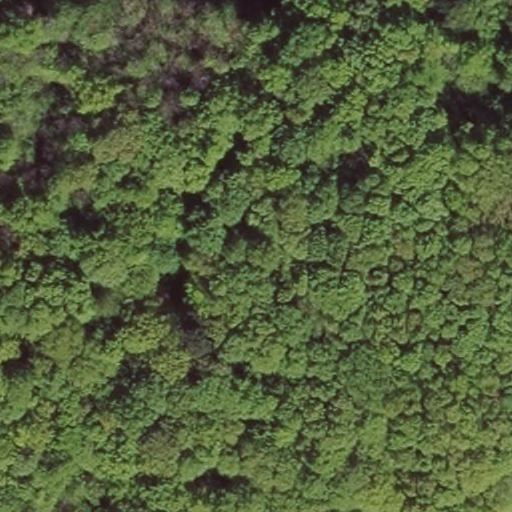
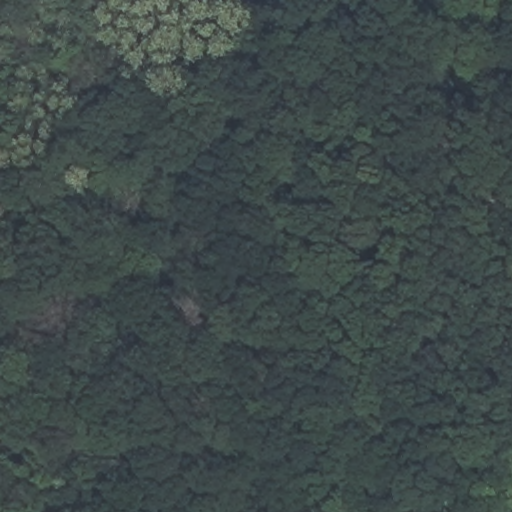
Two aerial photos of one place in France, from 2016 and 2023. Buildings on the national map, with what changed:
unchanged [(433,100),(413,104),(404,63),(424,59),(433,100)]

